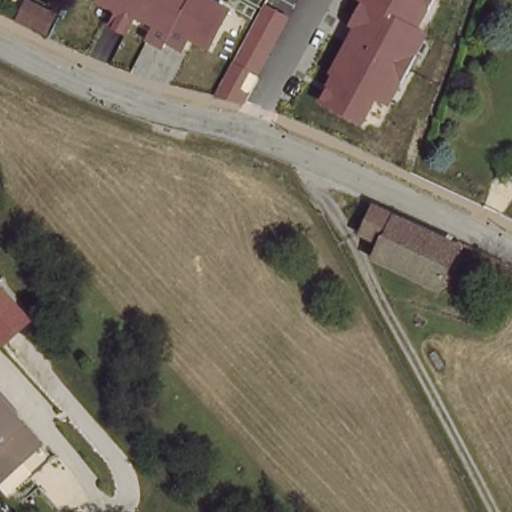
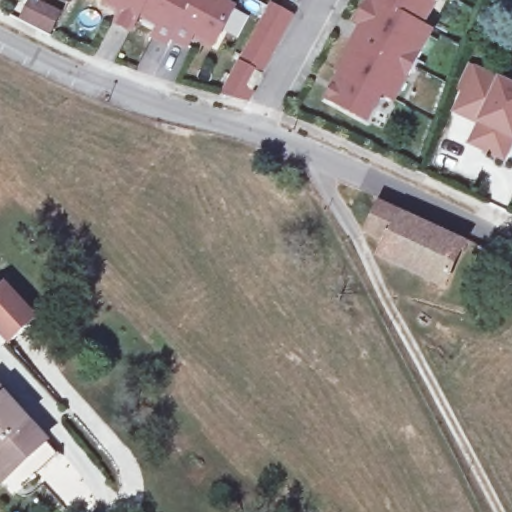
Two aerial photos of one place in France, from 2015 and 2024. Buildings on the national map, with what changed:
new [(17,18),(27,0),(39,0),(62,11),(51,35),(17,18)]
unchanged [(237,8),(215,49),(197,39),(192,52),(175,44),(171,49),(153,41),(160,27),(142,19),(135,37),(113,26),(122,12),(98,1),(99,0),(220,0),(237,8)]
unchanged [(427,25),(435,33),(397,109),(380,101),(368,126),(326,102),(361,29),(355,24),(369,0),(441,0),(427,25)]
unchanged [(295,17),(250,102),(217,94),(272,4),(295,17)]
new [(512,84),(512,148),(505,162),(465,144),(474,123),(450,113),(460,92),(455,90),(467,64),(512,84)]
unchanged [(379,260),(386,244),(366,234),(379,209),(460,249),(462,250),(442,291),(379,260)]
unchanged [(6,282),(37,319),(7,345),(0,338),(0,288),(6,282)]
unchanged [(42,444),(0,482),(0,398),(42,444)]

